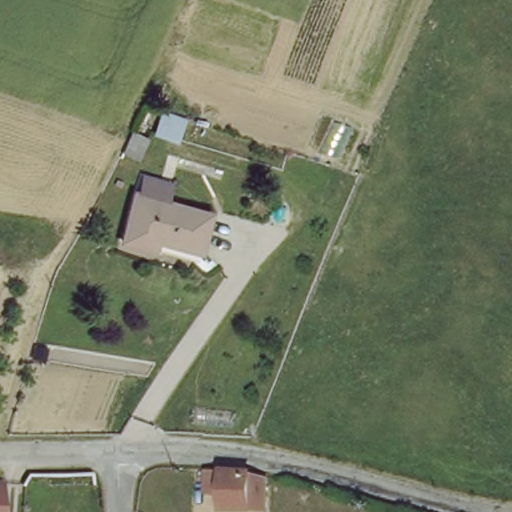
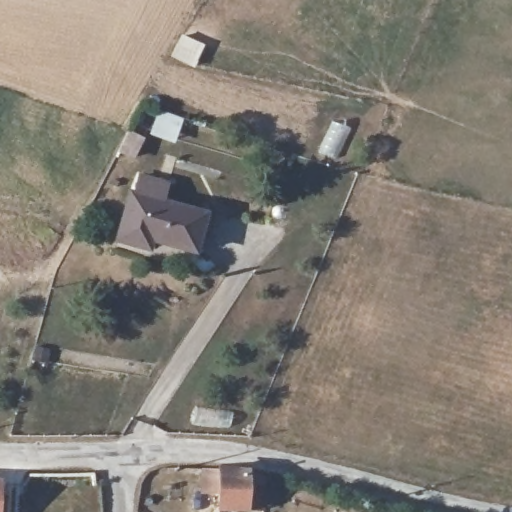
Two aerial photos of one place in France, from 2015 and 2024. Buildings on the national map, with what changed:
unchanged [(155,245),(154,256),(122,247),(127,230),(137,196),(205,218),(198,251),(196,257),(155,245)]
unchanged [(250,510),(221,506),(221,494),(204,493),(205,472),(221,473),(251,476),(267,481),(266,512),(250,510)]
unchanged [(2,488),(2,512),(0,512),(0,488),(2,488)]

